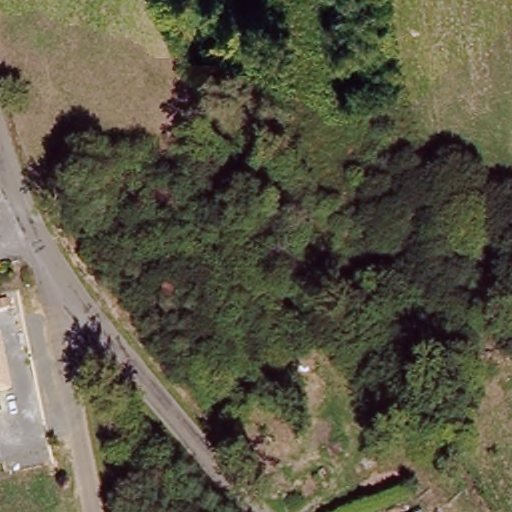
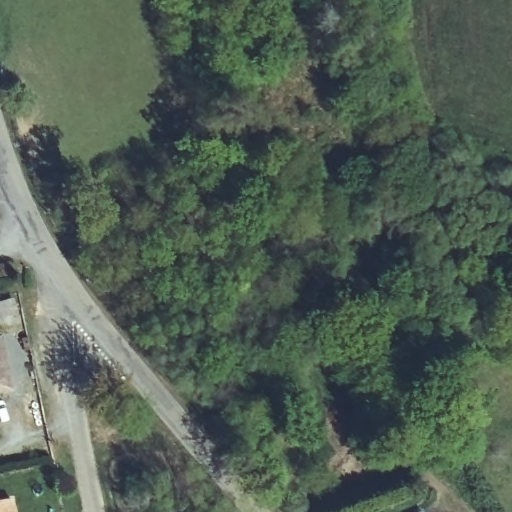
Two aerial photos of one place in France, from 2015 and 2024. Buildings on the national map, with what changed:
unchanged [(5,334),(16,392),(0,395),(0,335),(5,334)]
new [(16,500),(18,512),(0,512),(0,503),(16,500)]

